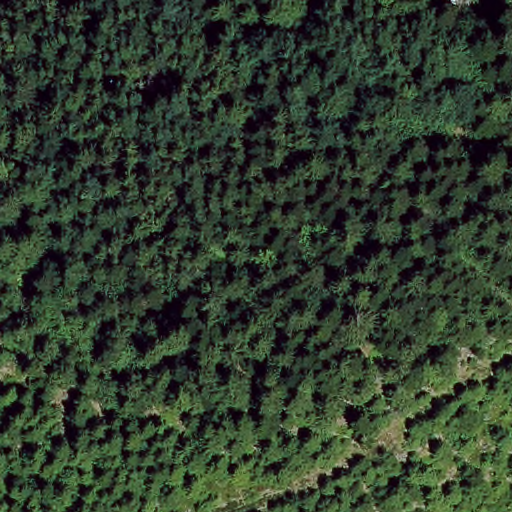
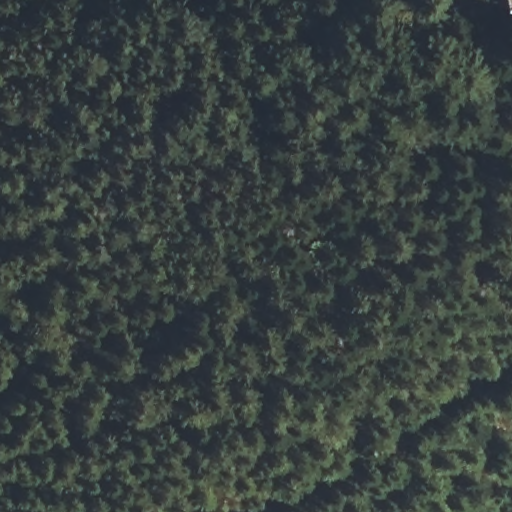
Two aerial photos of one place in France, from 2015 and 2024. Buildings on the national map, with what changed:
unchanged [(495,0),(499,0),(495,1),(495,0)]

